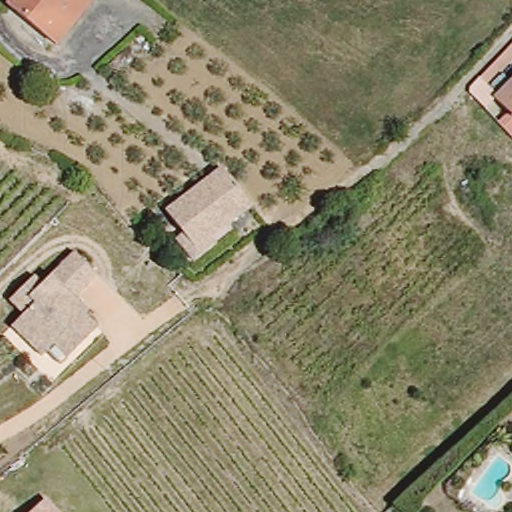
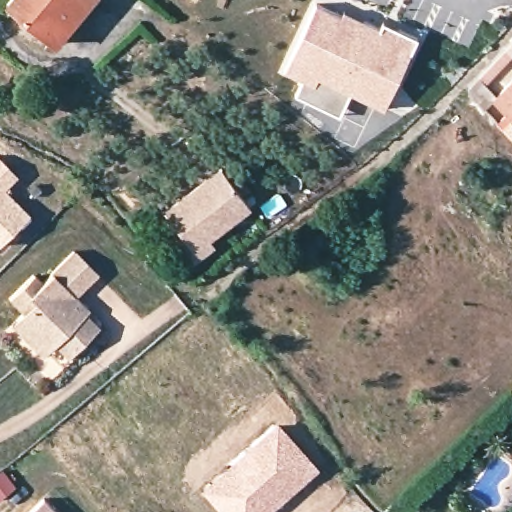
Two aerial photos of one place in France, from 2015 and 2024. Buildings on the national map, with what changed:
unchanged [(40,35),(2,5),(6,0),(66,0),(40,35)]
unchanged [(66,0),(81,0),(49,42),(40,35),(66,0)]
new [(376,25),(347,89),(336,113),(304,98),(292,92),(299,76),(280,68),(312,1),(337,12),(339,8),(361,18),(376,25)]
new [(379,18),(396,26),(414,34),(381,104),(347,89),(376,25),(379,18)]
unchanged [(512,71),(512,132),(503,142),(489,127),(501,115),(484,99),(512,71)]
new [(17,176),(5,188),(29,215),(0,241),(0,159),(17,176)]
unchanged [(189,257),(174,237),(181,231),(166,208),(220,170),(247,208),(207,235),(212,242),(189,257)]
unchanged [(51,344),(43,351),(16,320),(23,314),(9,299),(35,276),(42,283),(74,255),(95,278),(73,298),(81,306),(78,309),(96,329),(63,357),(51,344)]
new [(279,420),(321,467),(268,512),(222,512),(202,489),(233,460),(279,420)]
unchanged [(32,512),(45,500),(56,512),(32,512)]
new [(352,512),(351,512),(352,511),(352,512)]

